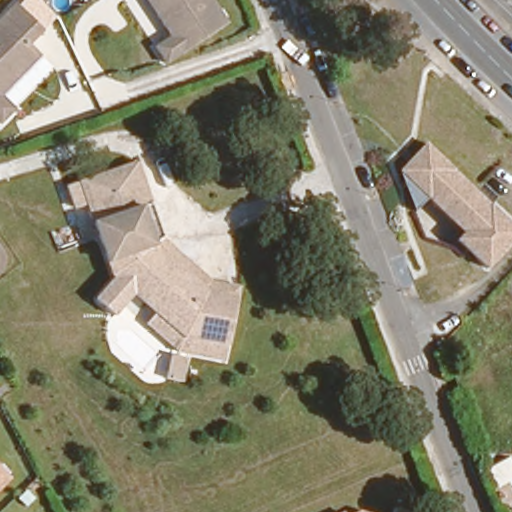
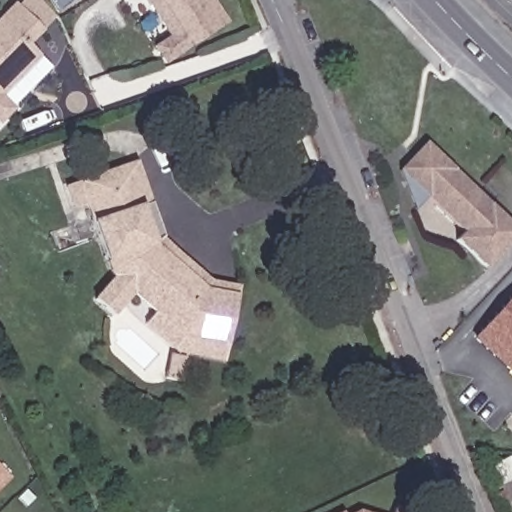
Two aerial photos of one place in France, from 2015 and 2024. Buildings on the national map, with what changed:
unchanged [(167,62),(156,46),(173,35),(150,0),(214,0),(228,22),(167,62)]
unchanged [(40,29),(26,43),(37,54),(0,91),(0,15),(13,2),(40,29)]
unchanged [(10,107),(11,108),(0,118),(0,97),(10,107)]
unchanged [(452,238),(459,231),(424,198),(413,211),(395,169),(423,140),(512,224),(512,241),(486,268),(452,238)]
unchanged [(142,213),(139,204),(89,220),(86,208),(74,211),(66,186),(136,163),(151,207),(142,213)]
unchanged [(142,213),(151,207),(165,238),(212,279),(237,284),(224,362),(186,356),(182,382),(161,379),(169,350),(139,325),(149,314),(130,296),(110,317),(89,298),(107,277),(103,262),(89,220),(139,204),(142,213)]
new [(512,294),(512,376),(472,340),(512,294)]
new [(512,460),(512,480),(497,488),(488,469),(510,456),(512,460)]
unchanged [(8,475),(0,482),(0,467),(8,475)]
unchanged [(337,510),(338,512),(333,512),(337,510)]

